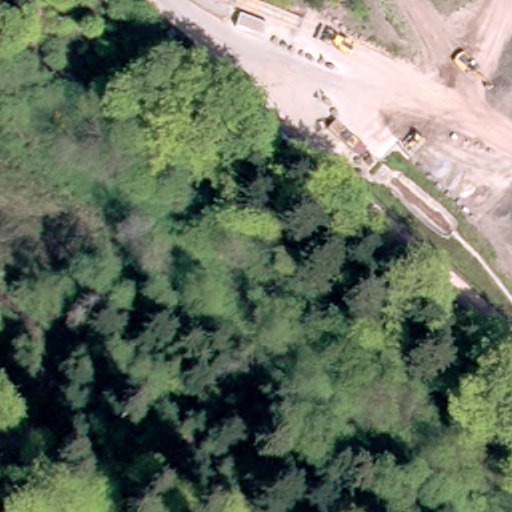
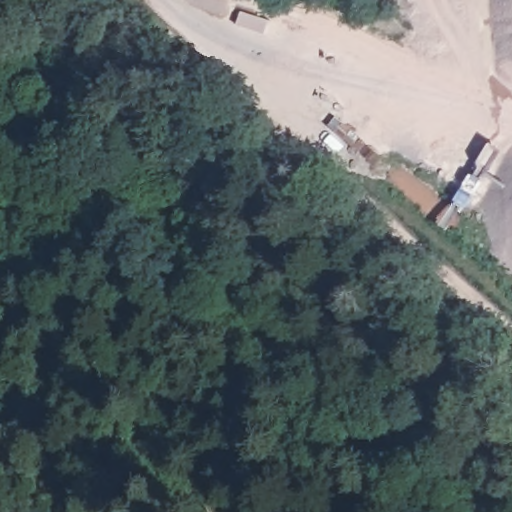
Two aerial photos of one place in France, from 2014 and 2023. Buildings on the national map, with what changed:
unchanged [(272,19),(266,39),(230,29),(237,9),(272,19)]

